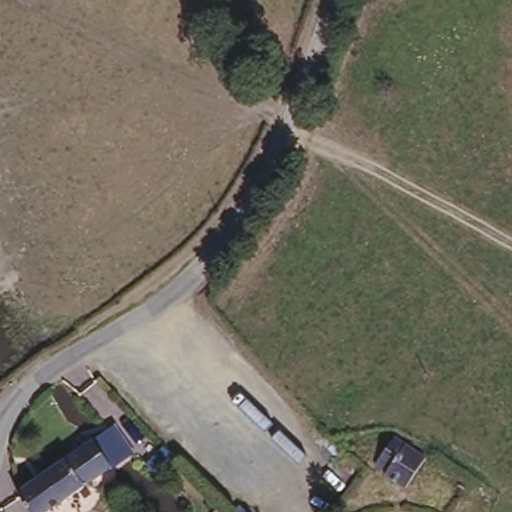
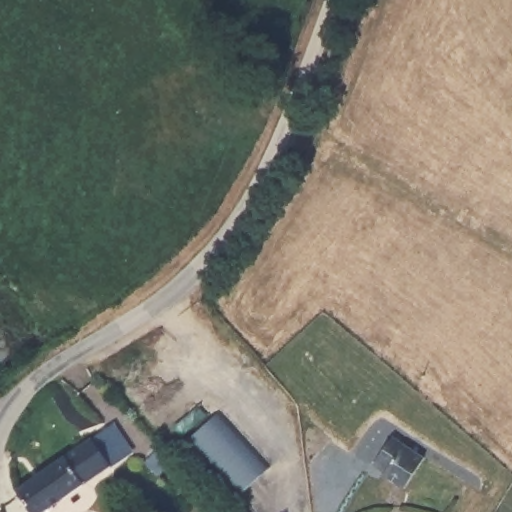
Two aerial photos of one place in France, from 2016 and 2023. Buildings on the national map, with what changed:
new [(188,449),(221,413),(271,469),(238,500),(188,449)]
unchanged [(117,423),(138,455),(51,512),(32,512),(16,490),(117,423)]
unchanged [(409,492),(381,474),(386,467),(380,462),(398,438),(432,459),(409,492)]

